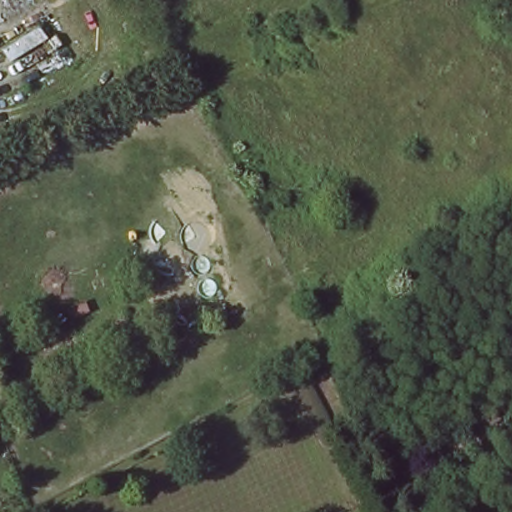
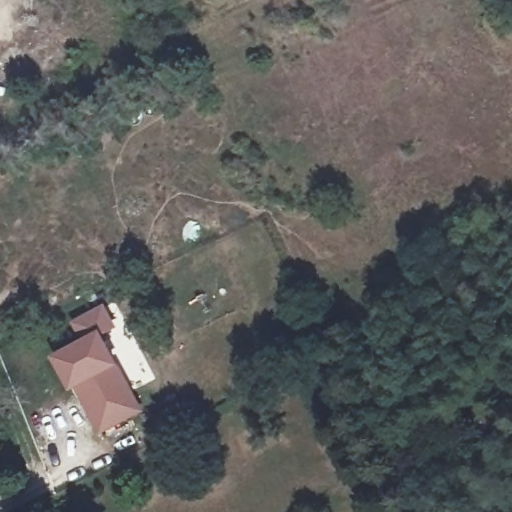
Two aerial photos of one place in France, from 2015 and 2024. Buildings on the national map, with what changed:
new [(75,389),(70,392),(52,357),(80,341),(70,322),(105,305),(119,329),(103,338),(119,365),(145,412),(100,437),(75,389)]

